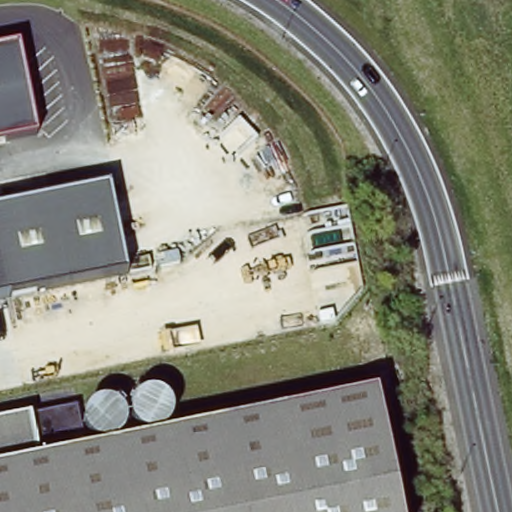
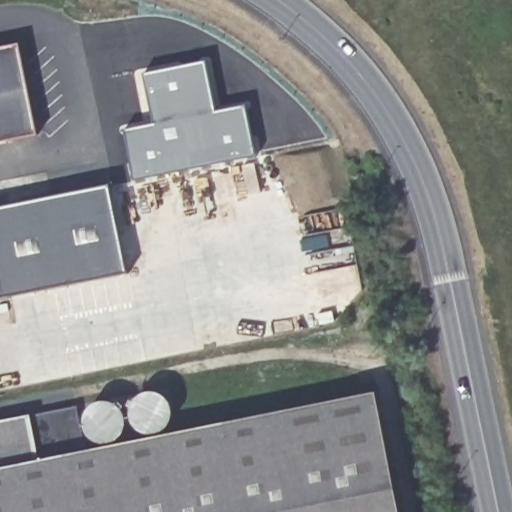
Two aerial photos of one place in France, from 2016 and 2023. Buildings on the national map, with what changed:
unchanged [(38,133),(0,141),(0,48),(20,44),(38,133)]
new [(135,178),(125,128),(154,122),(144,73),(206,62),(216,111),(246,105),(255,154),(135,178)]
unchanged [(0,209),(105,185),(123,268),(11,291),(0,294),(0,209)]
unchanged [(45,457),(377,389),(402,512),(0,512),(0,419),(34,413),(45,457)]

